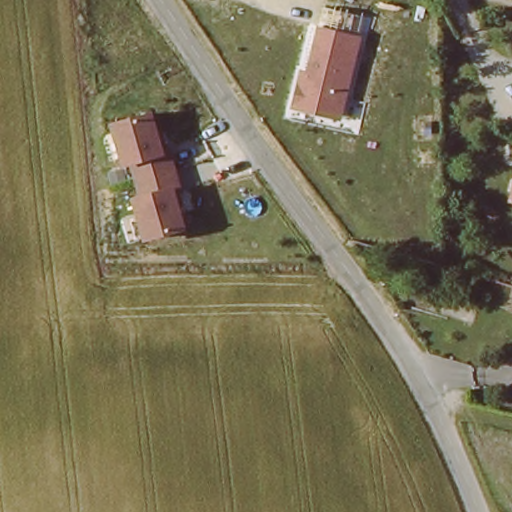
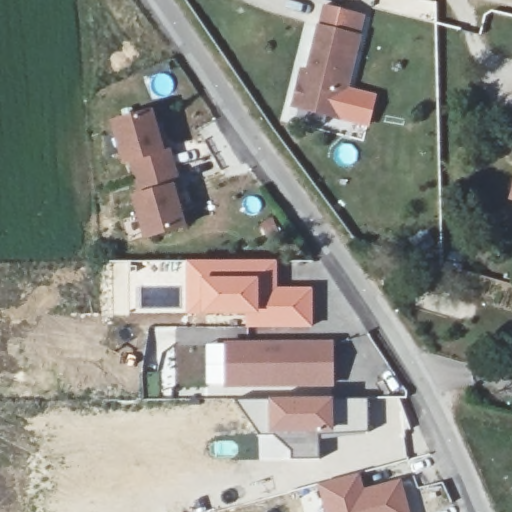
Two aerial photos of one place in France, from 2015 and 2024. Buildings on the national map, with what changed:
unchanged [(364,35),(343,120),(291,108),(299,68),(306,69),(316,24),(364,35)]
unchanged [(190,232),(147,243),(134,196),(142,193),(136,168),(130,170),(117,127),(155,111),(190,232)]
new [(187,314),(187,260),(278,259),(279,288),(313,287),(313,327),(248,329),(246,314),(203,315),(187,314)]
new [(335,341),(335,388),(226,389),(225,341),(335,341)]
new [(365,487),(401,477),(410,512),(321,512),(314,483),(360,470),(365,487)]

